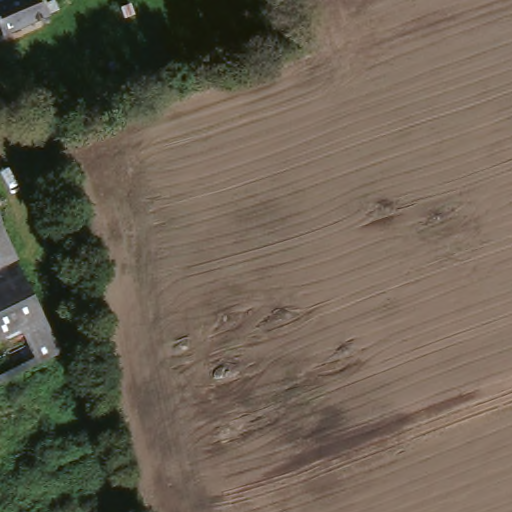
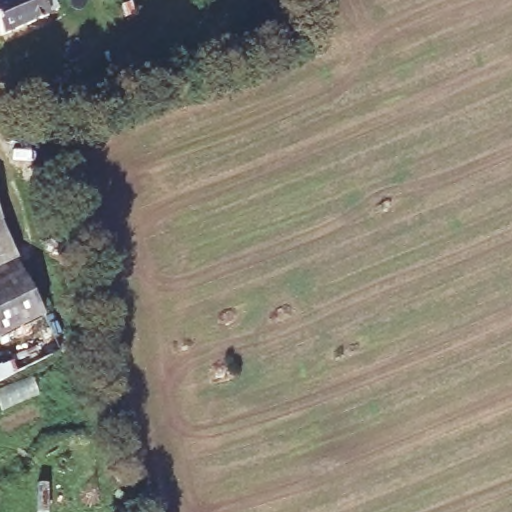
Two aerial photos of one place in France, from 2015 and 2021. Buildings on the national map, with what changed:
unchanged [(34,9),(0,21),(0,0),(30,0),(34,9)]
unchanged [(37,9),(49,36),(3,53),(0,45),(0,21),(34,9),(37,9)]
unchanged [(57,356),(0,380),(0,246),(11,242),(57,356)]

